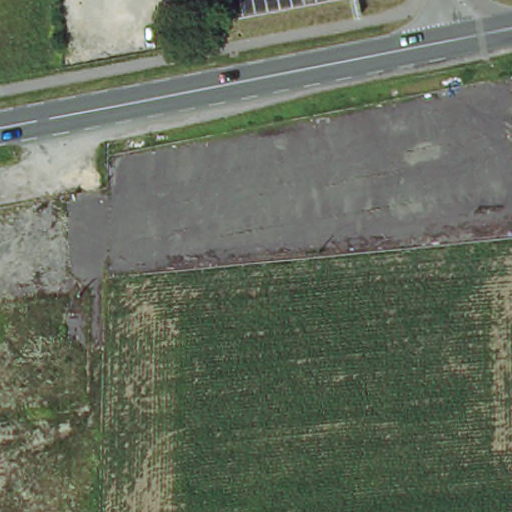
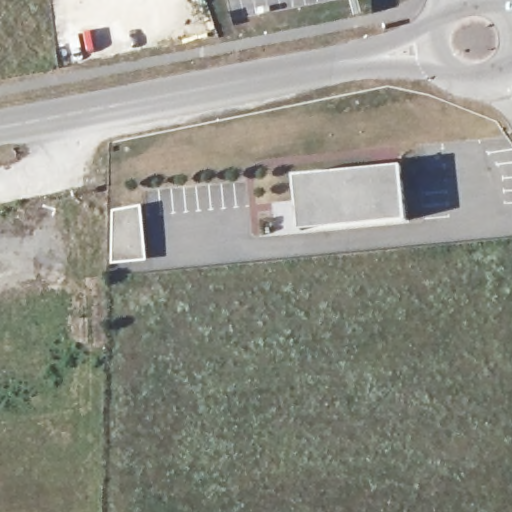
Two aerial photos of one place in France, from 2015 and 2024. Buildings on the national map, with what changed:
new [(292,177),(398,166),(403,220),(296,229),(292,177)]
new [(110,265),(111,210),(141,206),(146,261),(110,265)]

